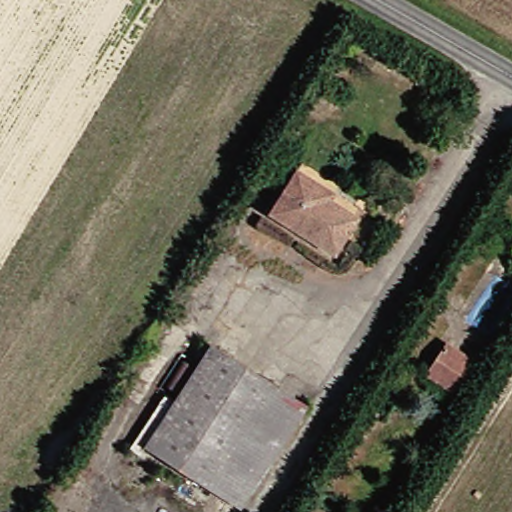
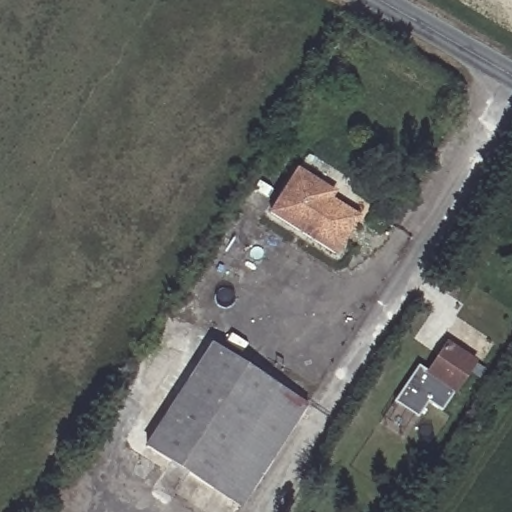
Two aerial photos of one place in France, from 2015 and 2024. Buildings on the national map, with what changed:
unchanged [(335,254),(270,213),(297,170),(323,186),(334,193),(330,199),(358,217),(335,254)]
unchanged [(208,358),(202,355),(210,342),(310,406),(244,507),(151,447),(208,358)]
unchanged [(427,373),(443,348),(447,343),(466,357),(475,362),(455,392),(427,373)]
new [(418,367),(427,373),(455,392),(442,411),(428,402),(418,417),(394,402),(418,367)]

